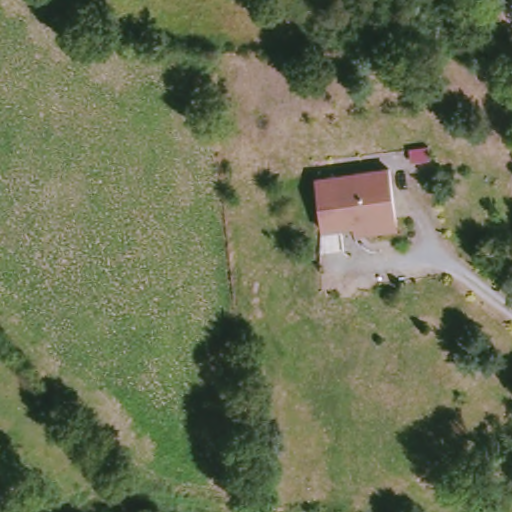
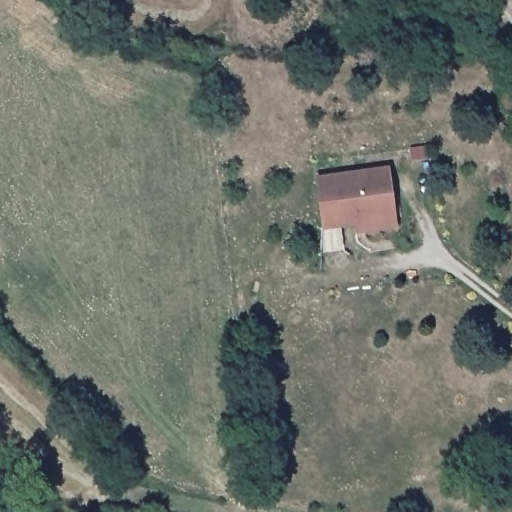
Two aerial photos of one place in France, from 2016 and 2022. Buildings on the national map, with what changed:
unchanged [(391,170),(398,219),(326,229),(319,180),(391,170)]

